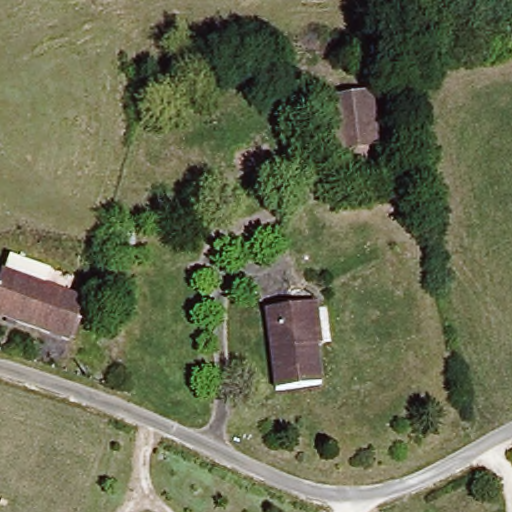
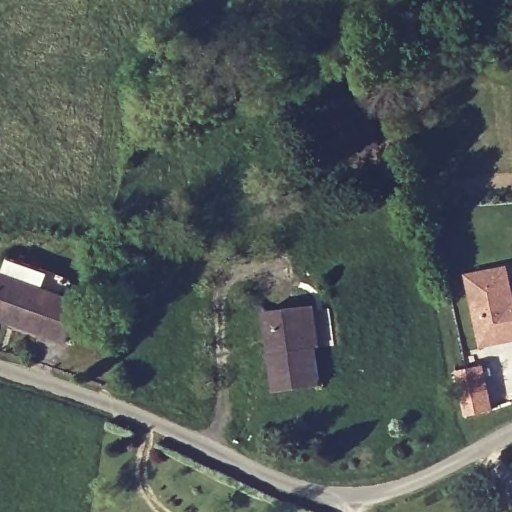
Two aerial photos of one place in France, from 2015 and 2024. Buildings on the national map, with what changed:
unchanged [(377,146),(338,152),(330,105),(369,99),(377,146)]
unchanged [(0,320),(0,265),(4,253),(69,271),(62,295),(75,299),(64,338),(0,320)]
new [(512,276),(512,341),(480,347),(465,273),(510,264),(512,276)]
unchanged [(272,394),(262,313),(302,308),(315,305),(320,340),(311,342),(317,386),(272,394)]

